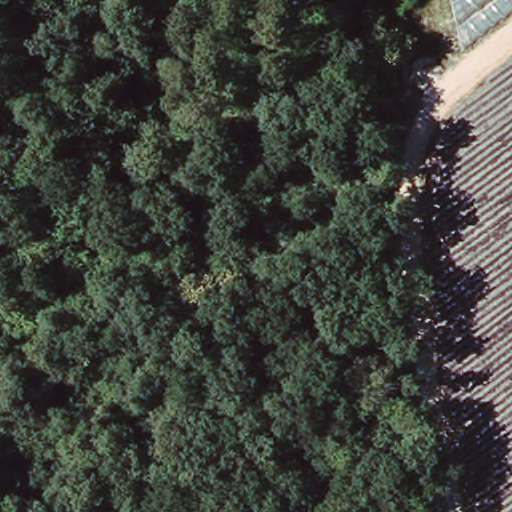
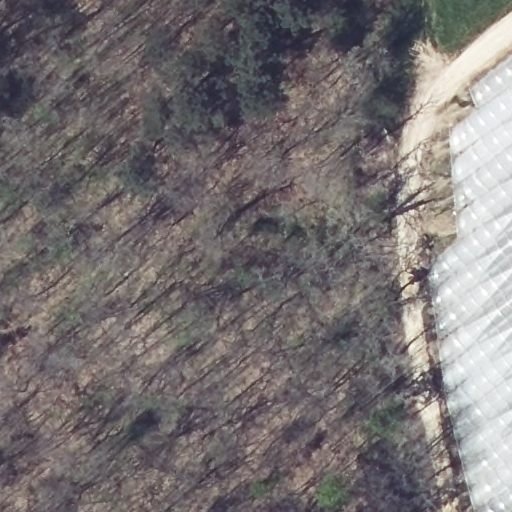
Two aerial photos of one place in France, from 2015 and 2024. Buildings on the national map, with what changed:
demolished [(440,121),(512,69),(512,502),(499,512),(490,512),(437,275),(440,121)]

